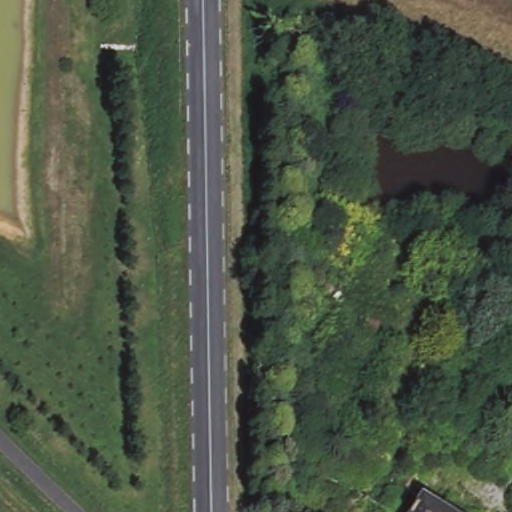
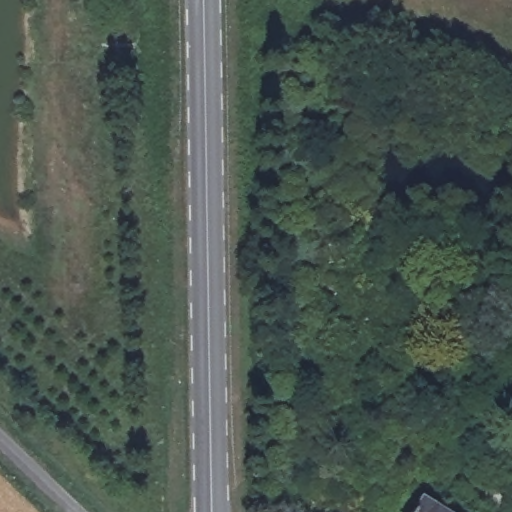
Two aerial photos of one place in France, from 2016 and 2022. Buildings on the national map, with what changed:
unchanged [(449,441),(443,451),(434,444),(440,436),(449,441)]
unchanged [(441,512),(409,512),(421,497),(441,512)]

